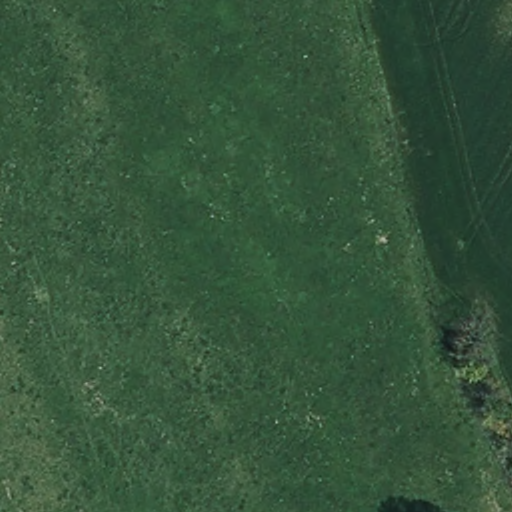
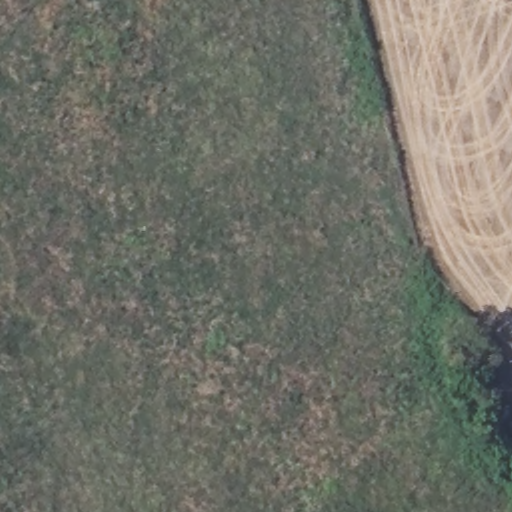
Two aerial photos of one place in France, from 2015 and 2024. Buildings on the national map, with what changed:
unchanged [(468,320),(484,307),(495,322),(480,333),(468,320)]

